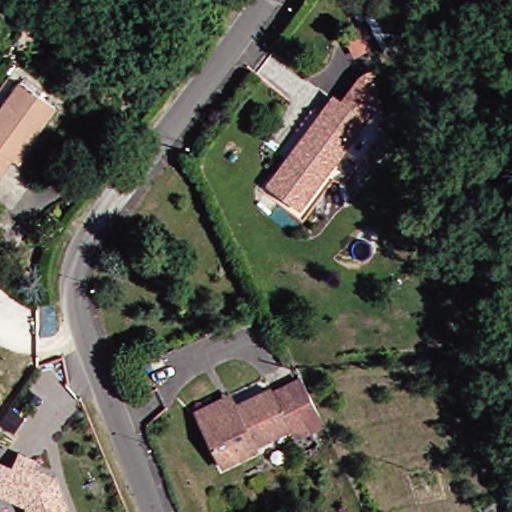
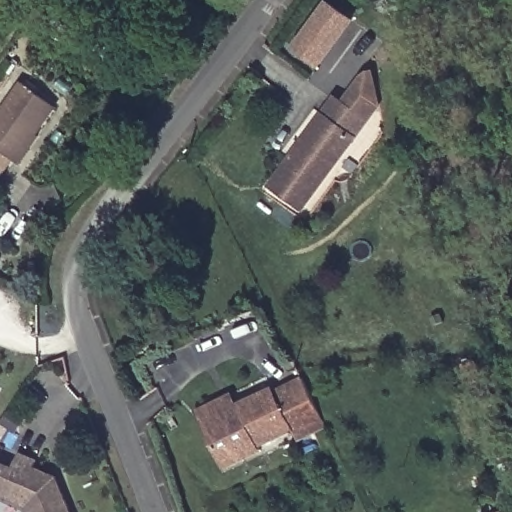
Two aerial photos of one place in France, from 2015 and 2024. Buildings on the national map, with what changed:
unchanged [(0,0),(1,0),(0,1),(0,0)]
unchanged [(19,21),(33,0),(34,0),(45,8),(32,29),(19,21)]
new [(318,68),(293,51),(324,5),(349,23),(318,68)]
demolished [(369,48),(355,56),(344,35),(358,27),(369,48)]
unchanged [(333,94),(342,99),(367,64),(378,96),(360,122),(329,100),(333,94)]
unchanged [(12,160),(0,177),(0,112),(21,83),(55,106),(35,136),(37,137),(18,164),(12,160)]
unchanged [(329,100),(360,122),(295,210),(264,187),(329,100)]
unchanged [(475,366),(484,393),(475,396),(465,369),(475,366)]
unchanged [(196,422),(191,411),(225,395),(230,406),(265,389),(267,393),(296,379),(319,427),(303,434),(300,428),(286,435),(284,430),(250,446),(252,450),(217,468),(195,422),(196,422)]
unchanged [(29,462),(51,472),(57,489),(66,512),(25,512),(21,501),(0,492),(0,459),(8,463),(14,448),(32,455),(29,462)]

